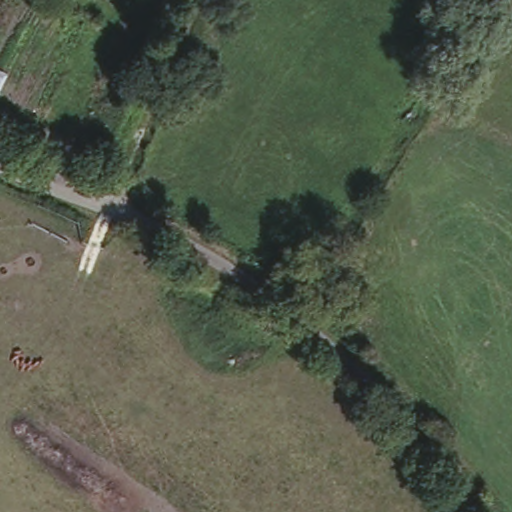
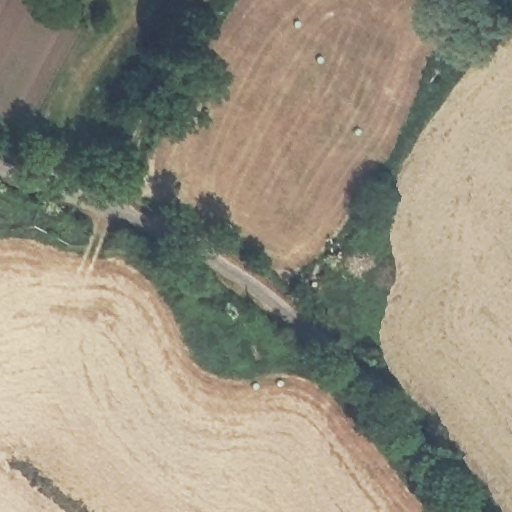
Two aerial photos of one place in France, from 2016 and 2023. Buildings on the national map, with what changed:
[]

